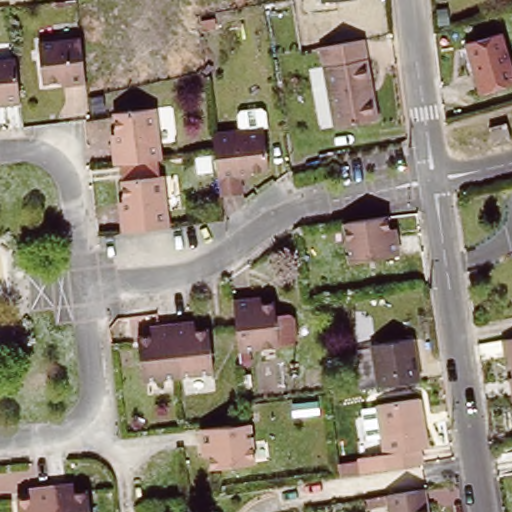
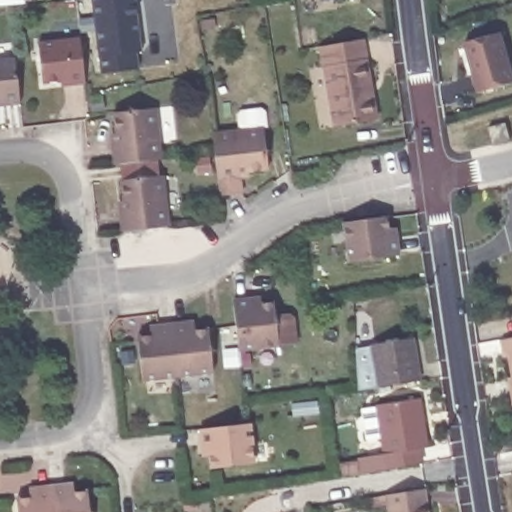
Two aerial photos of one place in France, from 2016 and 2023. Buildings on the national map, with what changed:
new [(137,51),(139,68),(102,73),(92,0),(135,0),(142,51),(137,51)]
unchanged [(321,0),(340,0),(322,2),(321,0)]
unchanged [(481,93),(467,43),(503,34),(512,67),(512,85),(481,93)]
unchanged [(335,126),(321,45),(364,37),(377,119),(335,126)]
unchanged [(70,82),(69,76),(45,80),(41,42),(82,38),(83,51),(87,80),(70,82)]
unchanged [(5,95),(0,96),(0,55),(17,54),(21,97),(5,99),(5,95)]
unchanged [(142,161),(117,165),(114,141),(119,141),(115,113),(156,107),(162,159),(142,161)]
unchanged [(240,173),(242,193),(221,195),(216,153),(213,132),(239,129),(237,114),(241,110),(261,108),(265,111),(267,126),(264,126),(269,170),(240,173)]
unchanged [(496,146),(491,129),(507,125),(512,141),(496,146)]
unchanged [(153,228),(125,232),(122,209),(127,208),(123,181),(165,175),(171,226),(153,228)]
unchanged [(351,262),(345,223),(387,216),(389,229),(396,228),(397,236),(400,255),(351,262)]
unchanged [(280,346),(241,350),(235,301),(246,300),(256,299),(256,305),(275,303),(280,346)]
unchanged [(195,329),(195,337),(209,335),(215,378),(180,382),(174,331),(187,329),(195,329)]
unchanged [(137,343),(152,342),(151,334),(159,333),(174,331),(180,382),(143,387),(137,343)]
unchanged [(511,357),(506,358),(502,340),(512,338),(512,364),(511,357)]
unchanged [(366,391),(363,351),(378,349),(378,346),(419,339),(427,380),(405,384),(366,391)]
unchanged [(420,450),(424,466),(414,467),(366,475),(363,460),(387,456),(377,407),(420,399),(428,448),(420,450)]
unchanged [(205,448),(202,428),(249,422),(251,422),(256,464),(214,469),(212,455),(206,456),(205,448)]
unchanged [(388,491),(426,485),(430,512),(391,512),(388,491)]
unchanged [(74,488),(75,496),(90,494),(92,512),(56,512),(54,491),(67,489),(74,488)]
unchanged [(17,502),(32,500),(31,493),(38,492),(54,491),(56,512),(18,512),(17,502)]

